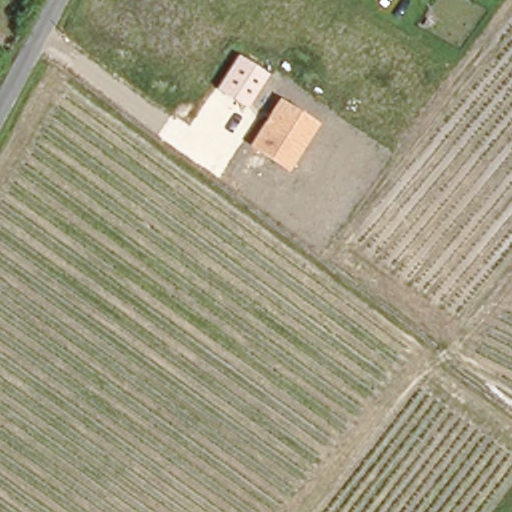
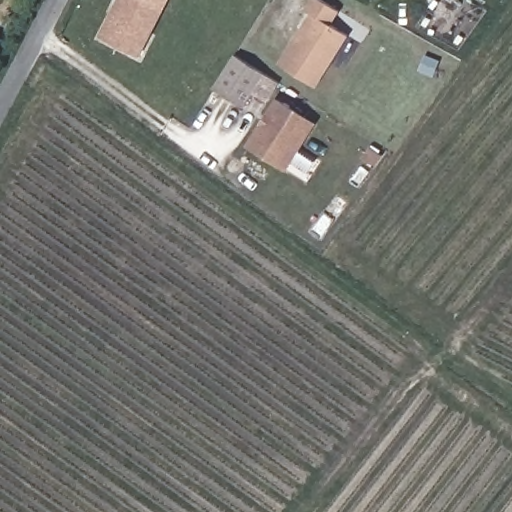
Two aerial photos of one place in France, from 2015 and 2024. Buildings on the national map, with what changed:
new [(100,36),(118,0),(171,0),(141,58),(100,36)]
new [(280,63),(313,13),(307,9),(313,0),(325,0),(341,10),(334,24),(350,35),(318,86),(280,63)]
unchanged [(0,35),(0,33),(1,33),(0,35)]
unchanged [(246,109),(215,89),(235,54),(270,76),(246,109)]
unchanged [(287,171),(246,145),(276,99),(318,124),(287,171)]

